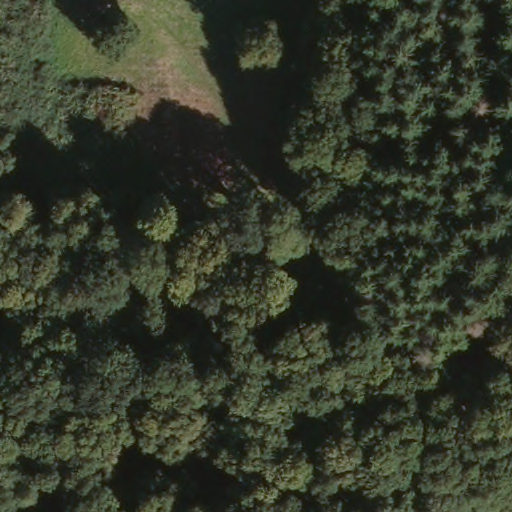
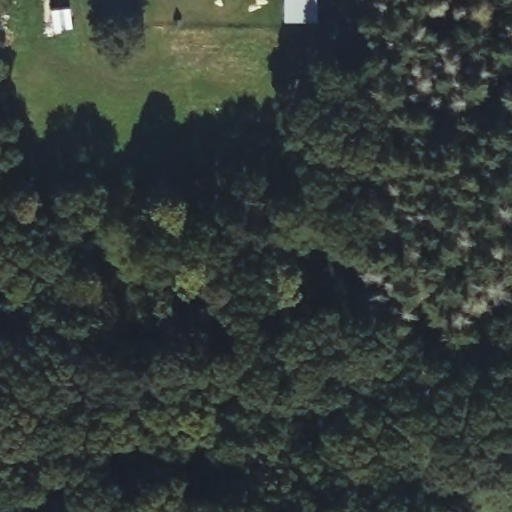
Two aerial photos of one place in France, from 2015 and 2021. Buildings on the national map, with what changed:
new [(283,21),(283,0),(316,0),(316,21),(283,21)]

